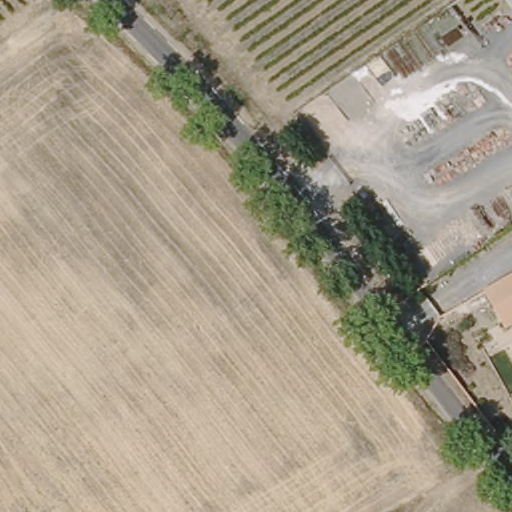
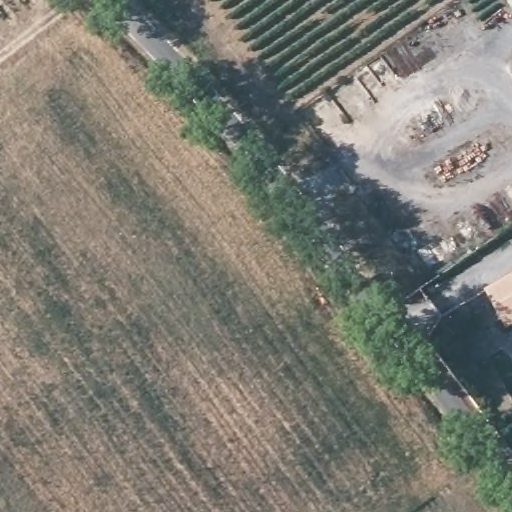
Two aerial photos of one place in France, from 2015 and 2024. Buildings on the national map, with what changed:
unchanged [(512,270),(512,275),(510,272),(512,270)]
unchanged [(510,272),(512,275),(512,322),(503,327),(481,288),(510,272)]

